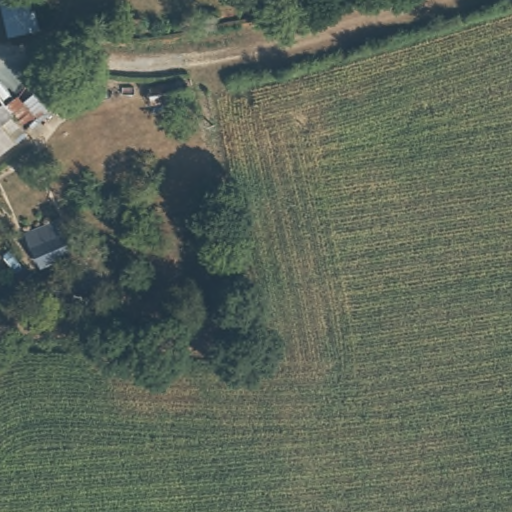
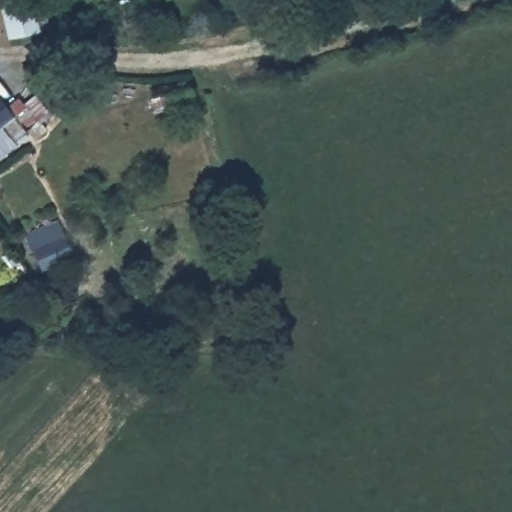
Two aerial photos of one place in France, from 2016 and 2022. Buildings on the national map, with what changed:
unchanged [(3,0),(36,0),(42,27),(12,34),(3,1),(3,0)]
unchanged [(4,98),(15,90),(23,101),(33,94),(39,102),(17,118),(19,119),(9,128),(2,119),(0,122),(0,93),(4,98)]
unchanged [(46,271),(40,274),(34,271),(33,267),(33,262),(34,258),(41,256),(37,246),(34,247),(26,230),(59,216),(63,225),(78,259),(48,274),(46,271)]

